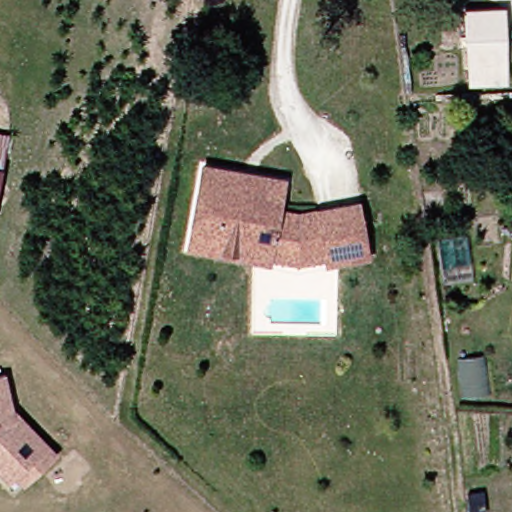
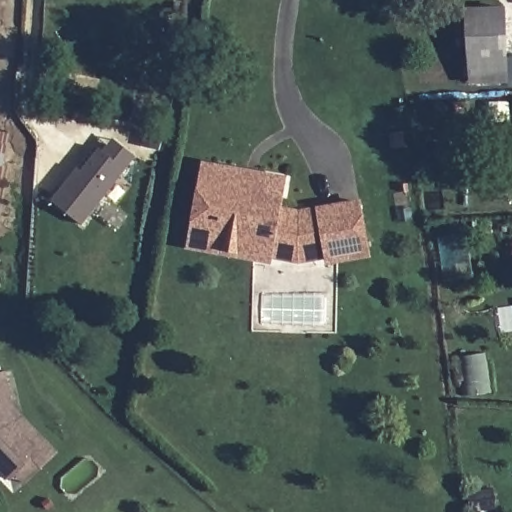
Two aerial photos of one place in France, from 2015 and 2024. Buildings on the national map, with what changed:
unchanged [(470,81),(467,11),(507,10),(510,80),(470,81)]
unchanged [(7,137),(1,167),(0,167),(0,135),(7,137)]
new [(133,157),(124,170),(112,160),(122,148),(133,157)]
new [(50,201),(70,176),(73,179),(97,149),(124,170),(81,225),(50,201)]
unchanged [(246,171),(286,177),(284,186),(280,209),(279,217),(272,257),(191,244),(196,217),(205,164),(246,171)]
unchanged [(0,175),(0,167),(1,167),(0,175)]
new [(73,179),(70,176),(76,168),(80,171),(73,179)]
unchanged [(360,202),(363,219),(370,252),(329,259),(329,257),(322,218),(320,209),(360,202)]
unchanged [(280,209),(300,212),(320,209),(322,218),(329,257),(301,262),(272,257),(279,217),(280,209)]
new [(486,353),(490,395),(461,396),(457,357),(486,353)]
unchanged [(25,486),(16,477),(10,482),(0,471),(0,375),(5,374),(12,408),(57,454),(25,486)]

